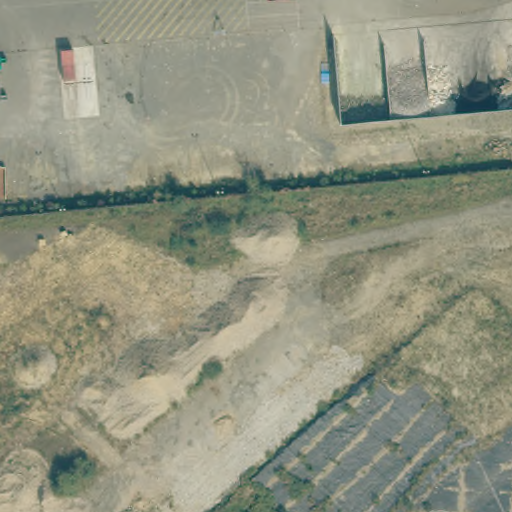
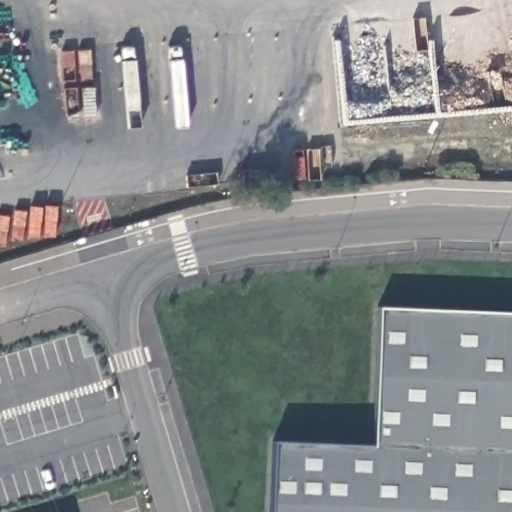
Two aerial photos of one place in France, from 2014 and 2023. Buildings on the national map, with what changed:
demolished [(126,330),(0,442),(0,310),(60,256),(126,330)]
new [(373,446),(380,307),(512,313),(512,512),(272,512),(275,441),(373,446)]
demolished [(410,356),(477,431),(385,512),(235,512),(410,356)]

